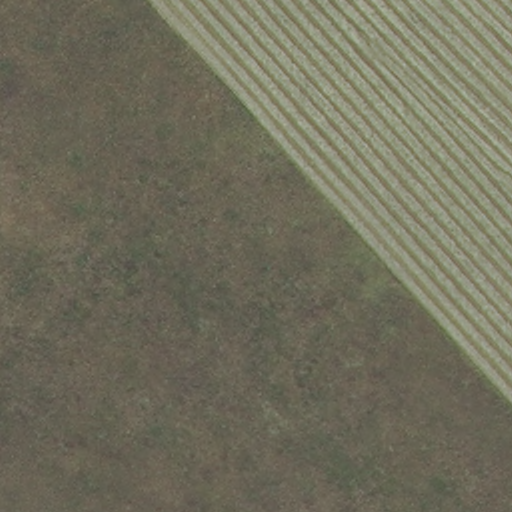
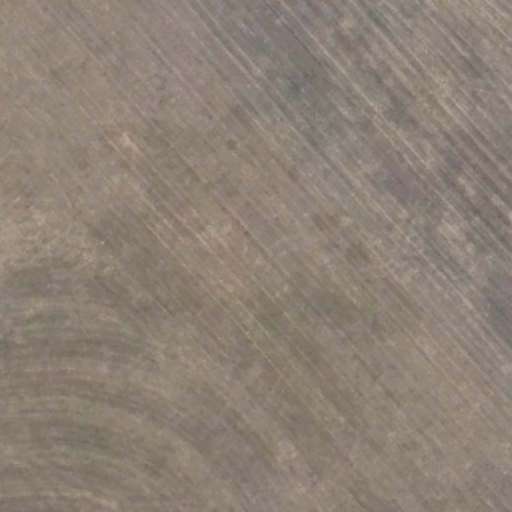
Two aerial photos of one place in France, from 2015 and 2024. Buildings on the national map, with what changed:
[]

